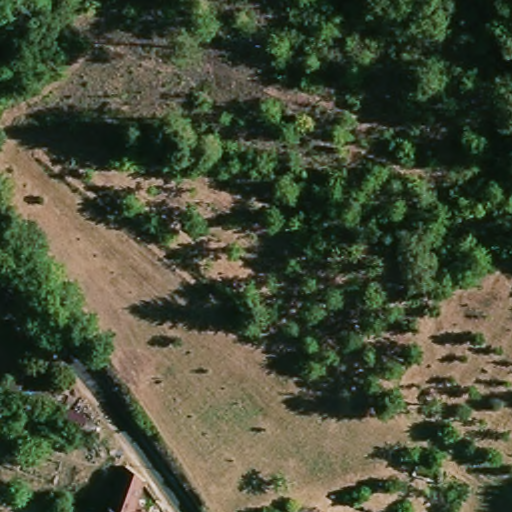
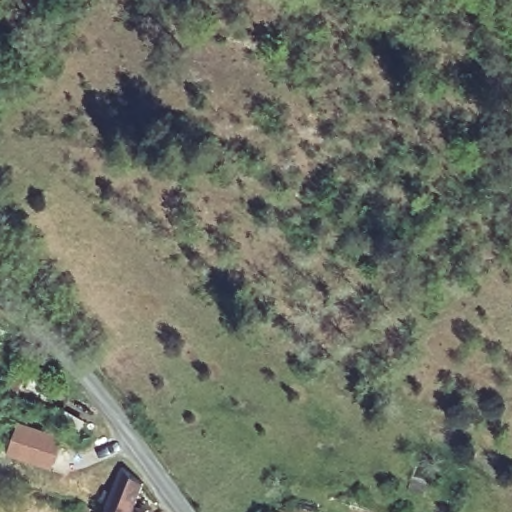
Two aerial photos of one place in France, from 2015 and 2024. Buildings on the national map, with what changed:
new [(21,422),(65,437),(54,468),(10,453),(21,422)]
unchanged [(122,474),(140,484),(130,507),(141,512),(107,512),(122,474)]

